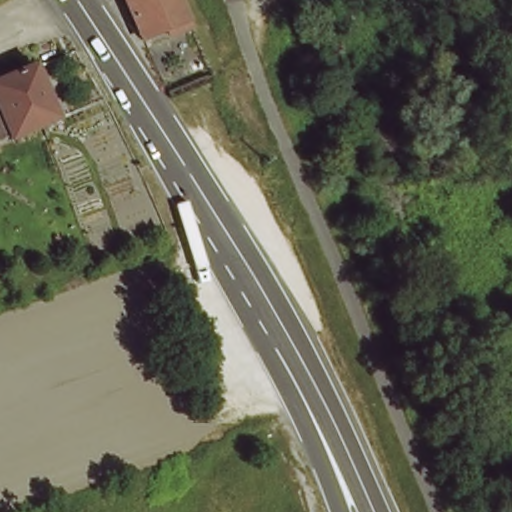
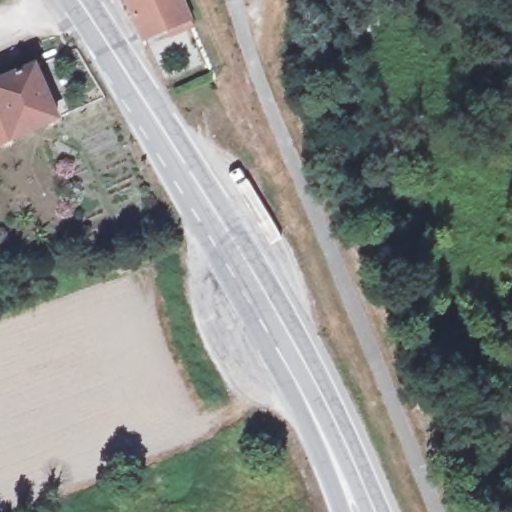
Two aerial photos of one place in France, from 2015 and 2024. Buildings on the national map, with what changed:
unchanged [(149,39),(145,41),(127,0),(181,0),(190,22),(194,28),(189,30),(172,37),(169,31),(149,39)]
unchanged [(55,117),(13,135),(12,130),(0,135),(0,78),(33,64),(55,117)]

